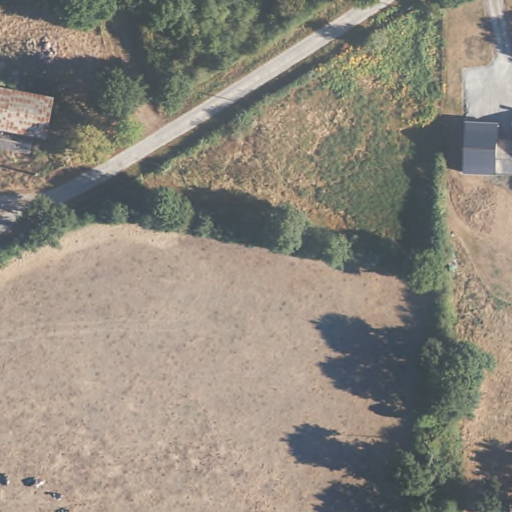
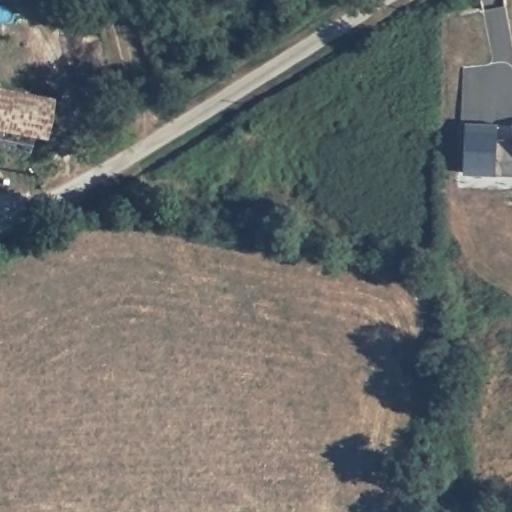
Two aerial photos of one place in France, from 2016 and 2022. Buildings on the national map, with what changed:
unchanged [(40,140),(28,139),(0,133),(0,91),(48,100),(40,140)]
unchanged [(462,173),(466,122),(498,123),(496,138),(512,139),(512,174),(462,173)]
unchanged [(25,155),(0,152),(0,133),(28,139),(25,155)]

